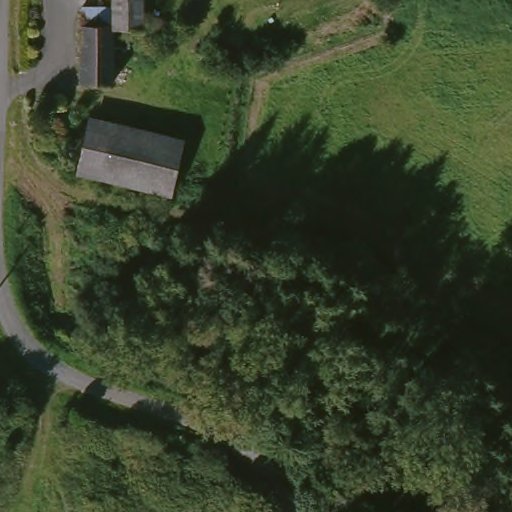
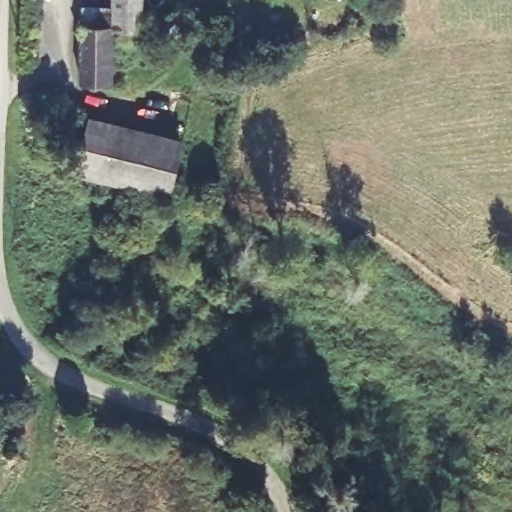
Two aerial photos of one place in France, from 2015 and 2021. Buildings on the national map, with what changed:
unchanged [(113,0),(116,25),(119,81),(92,84),(86,2),(113,0)]
unchanged [(113,0),(132,0),(134,24),(116,25),(113,0)]
unchanged [(134,24),(139,80),(119,81),(116,25),(134,24)]
unchanged [(183,139),(170,192),(76,171),(90,114),(183,139)]

